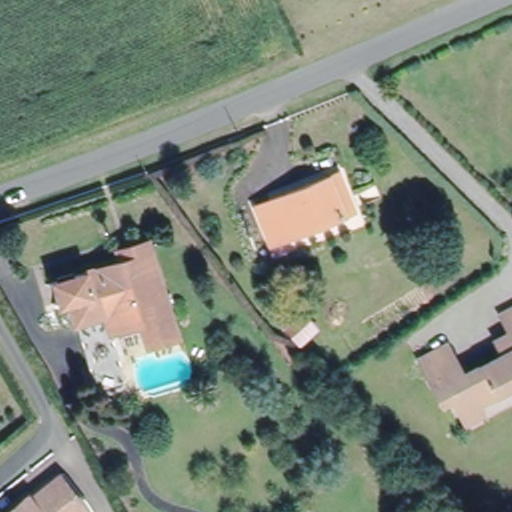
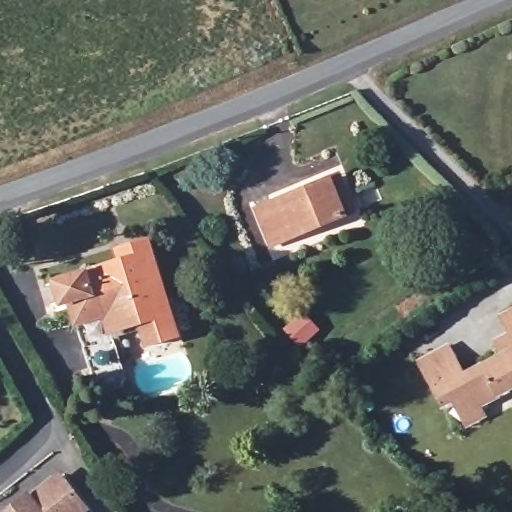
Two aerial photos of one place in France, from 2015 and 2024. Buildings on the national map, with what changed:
unchanged [(259,206),(330,176),(341,172),(357,209),(345,213),(274,244),(259,206)]
unchanged [(164,289),(170,287),(174,297),(163,300),(171,330),(170,334),(169,337),(167,338),(155,341),(151,340),(148,337),(141,315),(109,324),(124,375),(120,384),(103,389),(95,383),(69,294),(62,296),(56,276),(123,255),(120,244),(148,235),(164,289)]
unchanged [(506,314),(511,311),(512,311),(512,325),(506,314)]
unchanged [(470,420),(460,401),(457,395),(447,400),(435,377),(424,357),(452,342),(462,362),(468,373),(508,352),(504,343),(512,339),(512,386),(482,401),(487,411),(470,420)]
unchanged [(28,493),(31,496),(57,472),(85,503),(76,512),(8,512),(28,493)]

